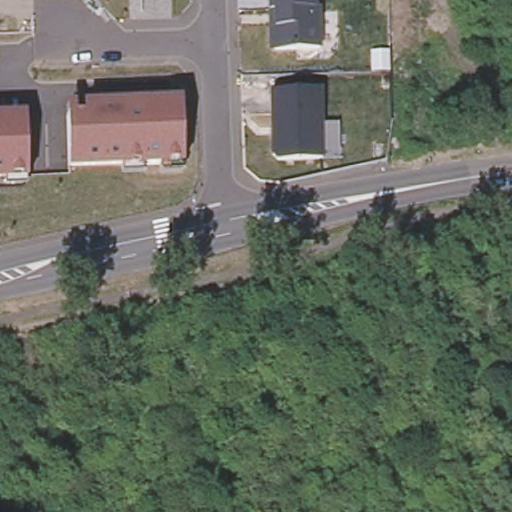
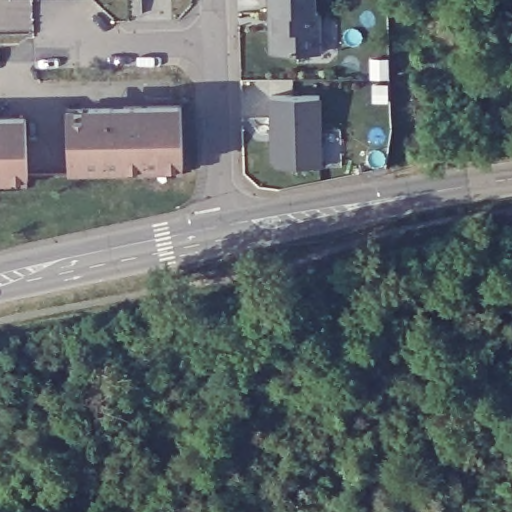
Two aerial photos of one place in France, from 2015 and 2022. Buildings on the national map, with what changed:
unchanged [(318,9),(320,50),(276,51),(271,46),(270,33),(276,28),(275,11),(270,11),(270,0),(314,0),(314,9),(318,9)]
unchanged [(322,161),(278,162),(273,157),(273,144),(277,139),(277,126),(272,126),(271,93),(320,91),(322,161)]
unchanged [(64,106),(179,102),(178,165),(65,165),(64,106)]
unchanged [(25,181),(0,181),(0,115),(23,114),(25,181)]

